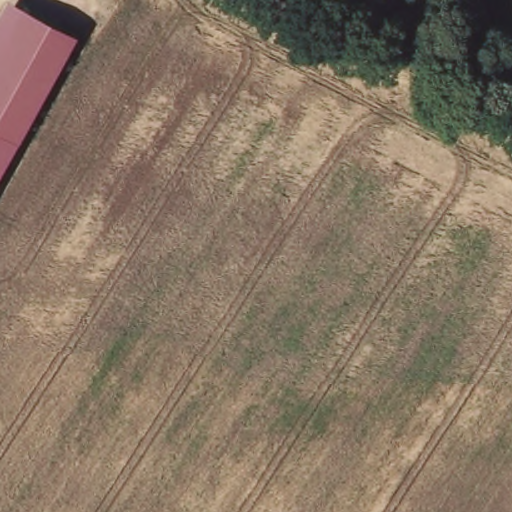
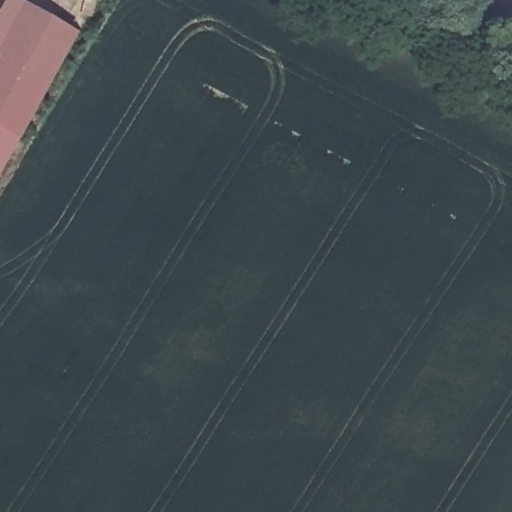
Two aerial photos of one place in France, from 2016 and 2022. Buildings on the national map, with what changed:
unchanged [(0,170),(0,9),(5,0),(16,0),(75,33),(0,170)]

